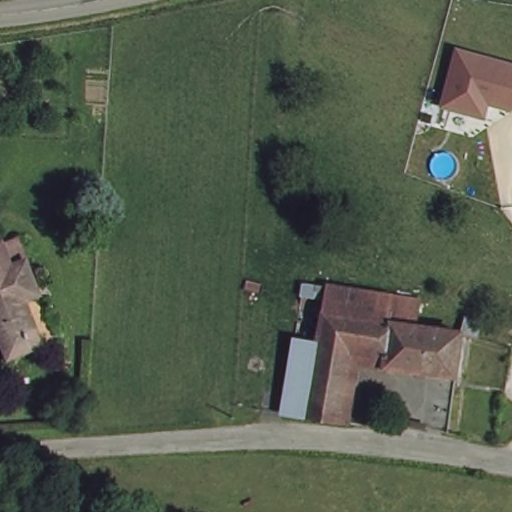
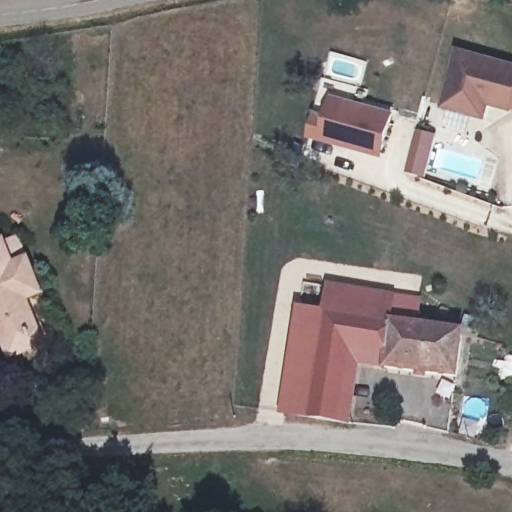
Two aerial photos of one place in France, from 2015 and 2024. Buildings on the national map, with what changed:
unchanged [(512,63),(512,110),(491,106),(486,119),(440,105),(457,49),(460,49),(512,63)]
new [(306,137),(314,111),(325,114),(331,94),(395,113),(382,159),(306,137)]
unchanged [(12,363),(7,350),(0,332),(0,257),(5,255),(11,268),(28,262),(43,297),(26,302),(40,334),(45,348),(12,363)]
unchanged [(341,423),(285,417),(295,340),(320,344),(326,291),(416,305),(415,327),(428,329),(460,336),(454,379),(428,376),(360,367),(351,424),(341,423)]

